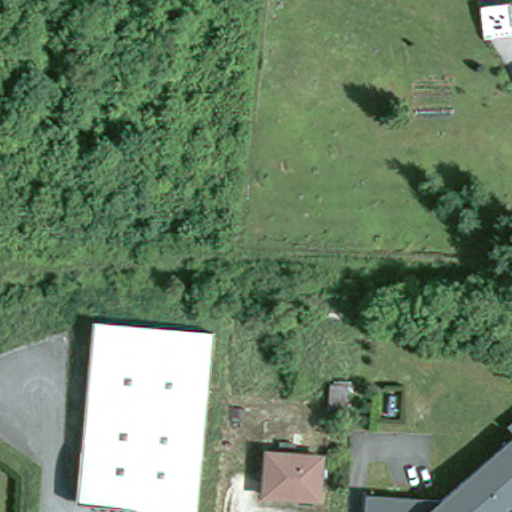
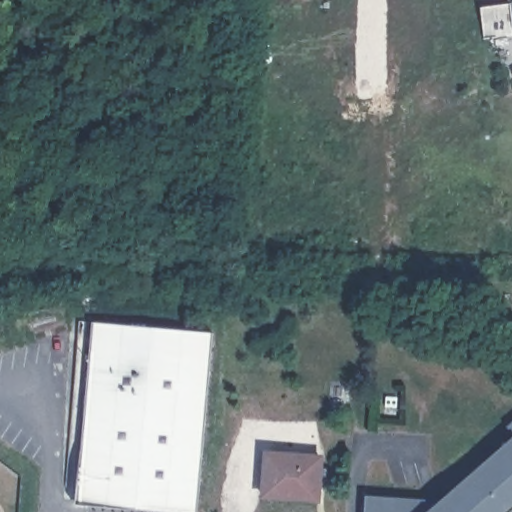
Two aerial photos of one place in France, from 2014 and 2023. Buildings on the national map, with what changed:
unchanged [(485,39),(480,7),(511,4),(512,14),(512,35),(485,39)]
unchanged [(211,327),(194,510),(89,500),(75,484),(90,315),(211,327)]
unchanged [(512,421),(512,433),(506,426),(512,421)]
unchanged [(512,437),(512,510),(509,512),(364,512),(365,496),(440,500),(512,437)]
unchanged [(322,458),(318,500),(264,497),(267,454),(322,458)]

